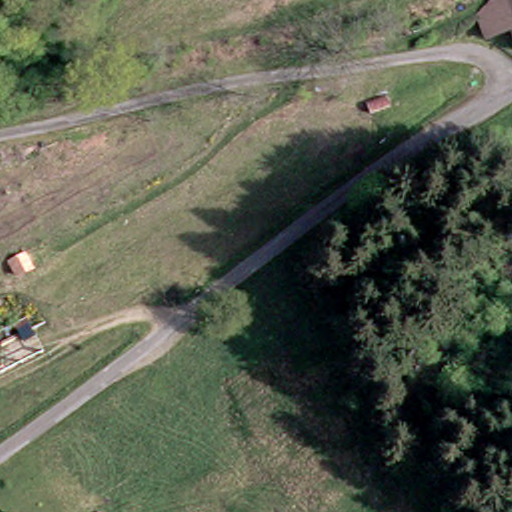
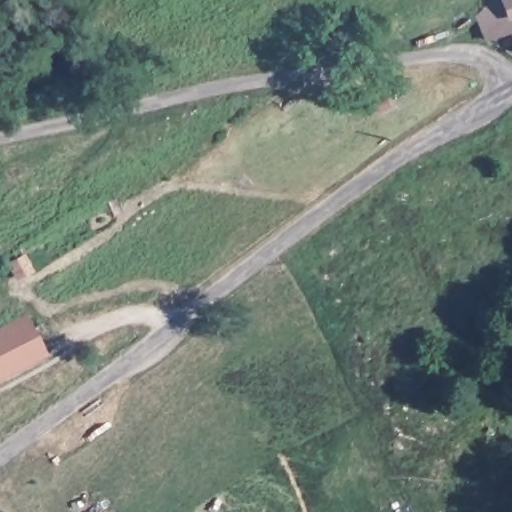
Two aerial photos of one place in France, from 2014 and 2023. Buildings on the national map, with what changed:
unchanged [(511,41),(502,11),(482,18),(476,1),(478,0),(512,0),(512,45),(511,41)]
unchanged [(378,97),(384,110),(361,119),(356,107),(378,97)]
new [(0,379),(0,328),(27,314),(47,355),(0,379)]

